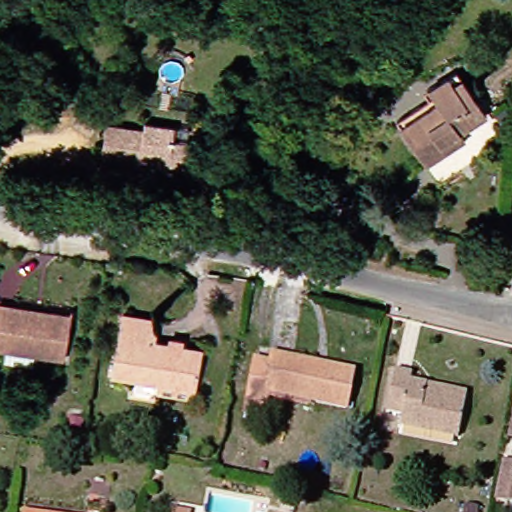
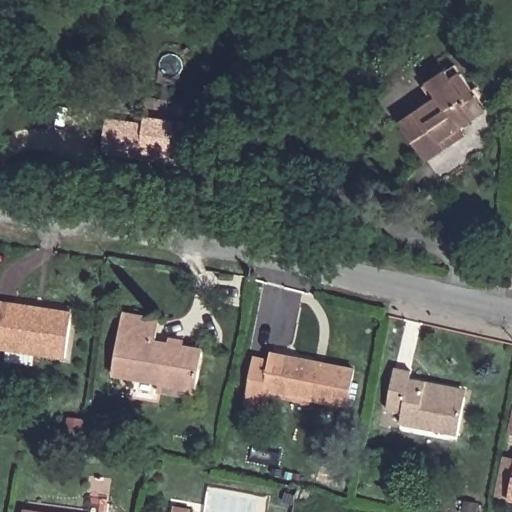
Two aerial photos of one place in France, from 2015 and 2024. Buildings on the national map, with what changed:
unchanged [(426,156),(400,117),(395,110),(433,86),(427,77),(446,65),(452,73),(461,68),(475,91),(485,107),(459,124),(464,130),(445,143),(426,156)]
unchanged [(175,119),(174,133),(188,136),(184,164),(103,152),(108,118),(143,124),(144,114),(175,119)]
unchanged [(64,356),(0,347),(0,303),(70,314),(64,356)]
unchanged [(163,393),(165,382),(118,373),(130,314),(163,320),(160,342),(206,351),(199,388),(197,399),(163,393)]
unchanged [(366,374),(359,410),(282,396),(278,418),(260,414),(269,364),(286,367),(288,359),(366,374)]
unchanged [(414,375),(431,378),(470,386),(469,391),(461,429),(405,418),(408,406),(392,403),(400,363),(415,366),(414,375)]
unchanged [(481,512),(467,508),(470,496),(483,498),(481,512)]

